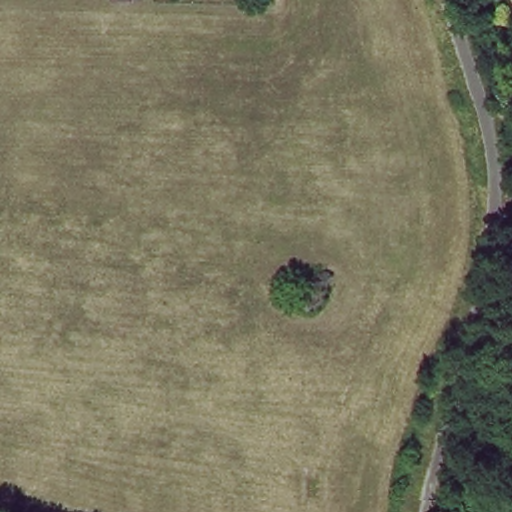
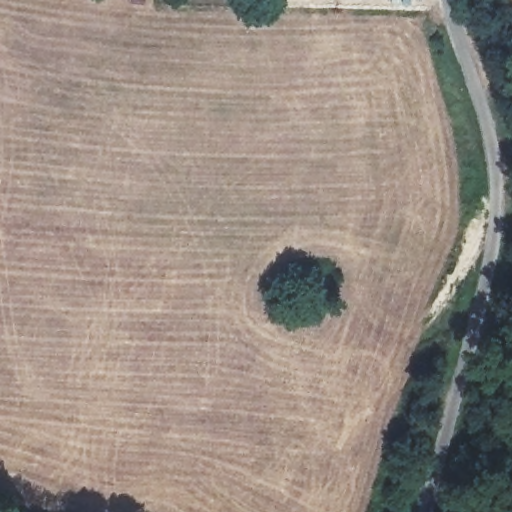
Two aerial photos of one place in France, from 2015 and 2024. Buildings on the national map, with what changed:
[]

